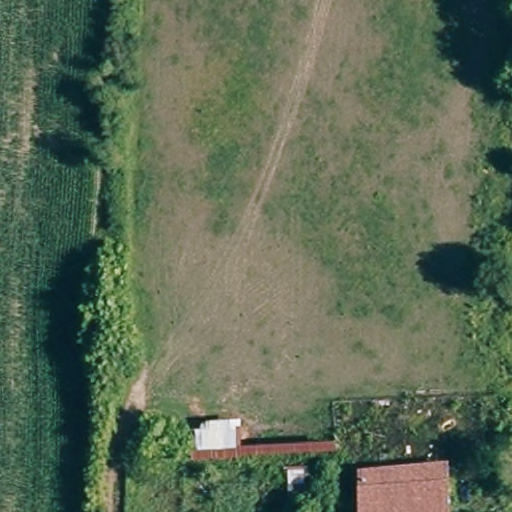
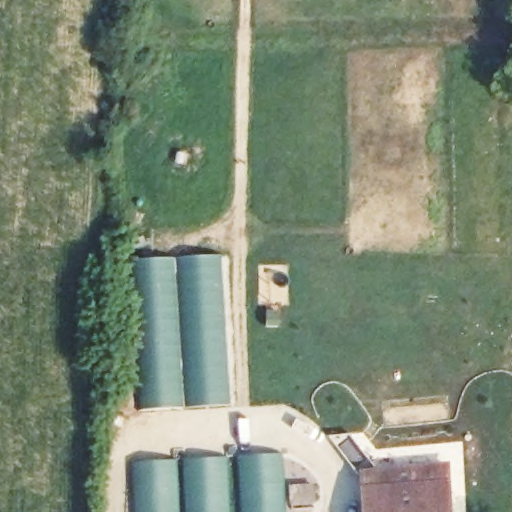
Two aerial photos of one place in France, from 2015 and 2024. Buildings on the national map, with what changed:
new [(224,254),(232,406),(136,411),(131,258),(224,254)]
new [(295,482),(305,482),(306,499),(295,500),(286,500),(287,512),(135,512),(132,463),(282,455),(285,482),(295,482)]
unchanged [(447,512),(364,512),(363,471),(446,468),(447,512)]
demolished [(306,499),(295,500),(286,500),(285,482),(295,482),(305,482),(306,499)]

